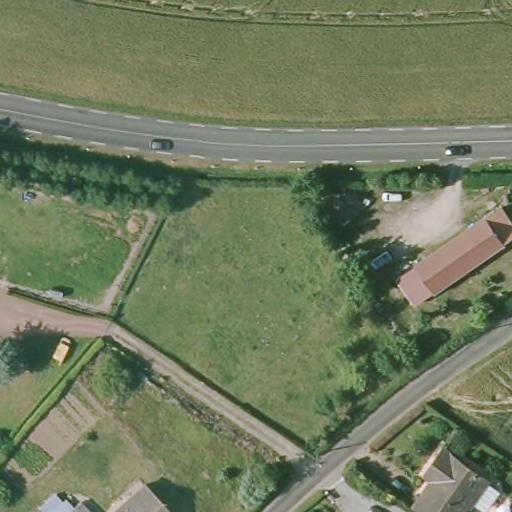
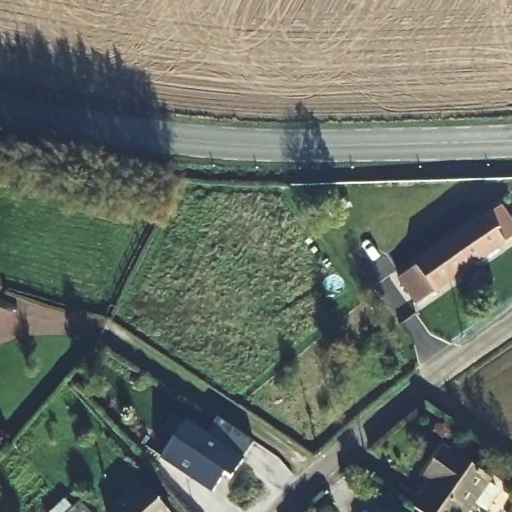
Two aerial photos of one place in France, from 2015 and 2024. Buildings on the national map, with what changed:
unchanged [(400,290),(397,287),(390,290),(386,284),(369,257),(390,244),(407,269),(476,222),(471,215),(484,207),(488,213),(497,208),(512,228),(512,239),(420,303),(411,309),(400,290)]
new [(217,417),(255,442),(244,457),(230,478),(224,474),(212,491),(161,456),(186,418),(207,432),(217,417)]
unchanged [(432,476),(426,471),(442,448),(486,475),(485,477),(497,484),(494,487),(496,492),(487,504),(475,506),(470,502),(462,512),(406,512),(432,476)]
unchanged [(169,512),(168,512),(115,512),(136,486),(169,512)]
unchanged [(91,512),(68,512),(79,502),(91,512)]

